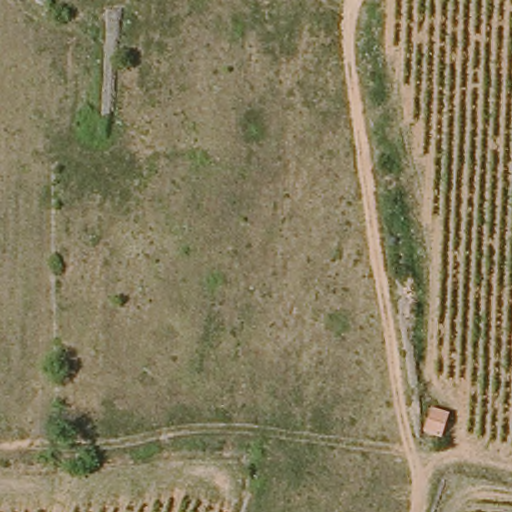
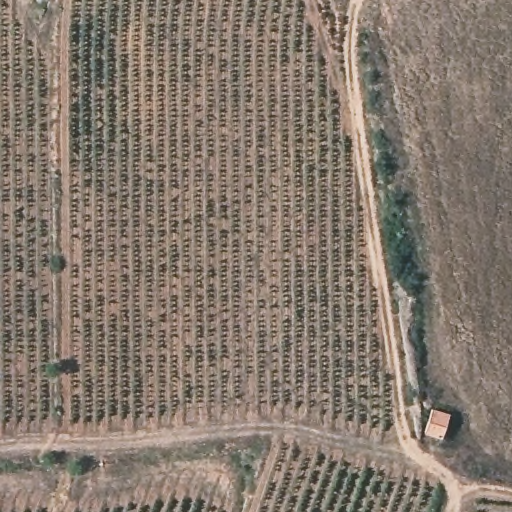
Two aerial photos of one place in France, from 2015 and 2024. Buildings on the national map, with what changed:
unchanged [(442,433),(428,426),(434,408),(450,415),(442,433)]

